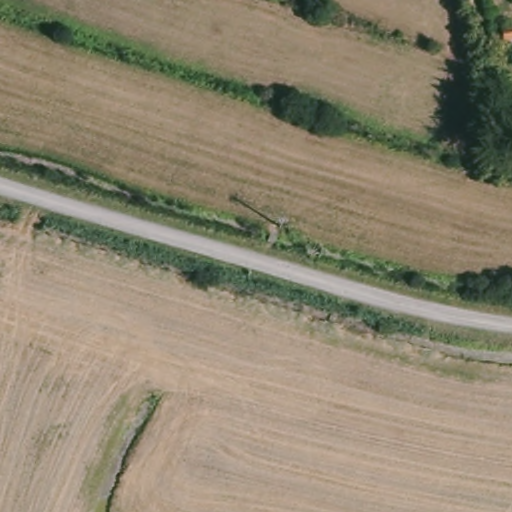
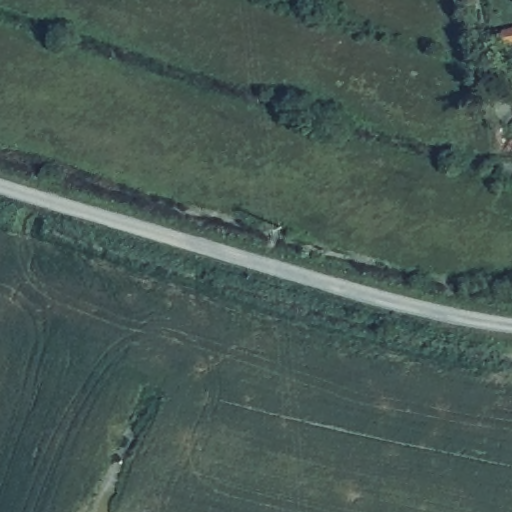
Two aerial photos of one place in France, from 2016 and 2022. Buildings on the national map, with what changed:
unchanged [(503,54),(498,34),(512,32),(512,52),(503,54)]

